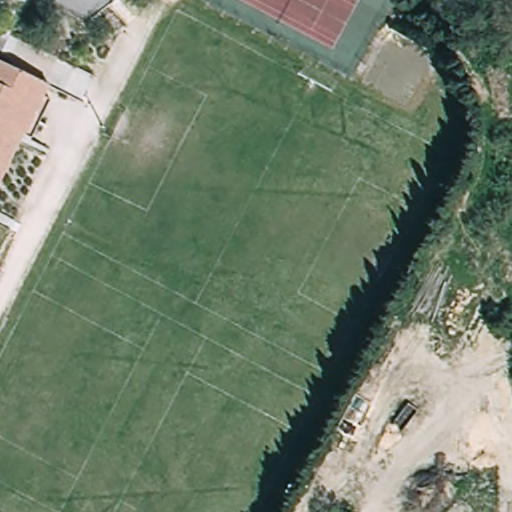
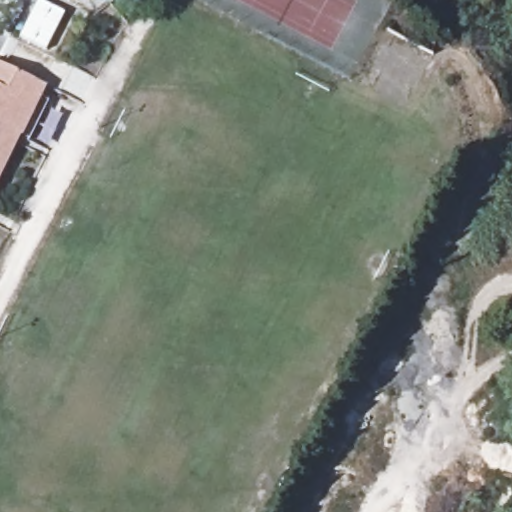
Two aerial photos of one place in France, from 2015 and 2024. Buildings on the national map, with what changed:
unchanged [(0,169),(0,59),(2,56),(59,85),(33,134),(21,129),(0,169)]
unchanged [(0,169),(21,129),(33,134),(0,197),(0,169)]

